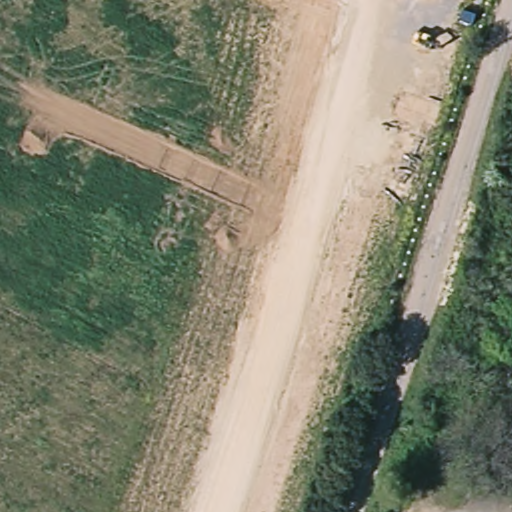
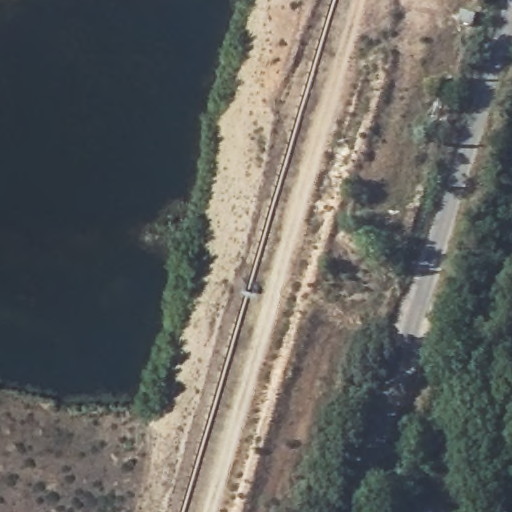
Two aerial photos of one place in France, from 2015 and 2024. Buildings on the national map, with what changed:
[]

